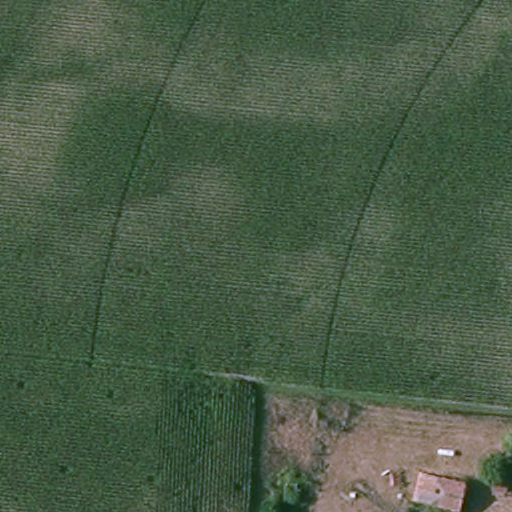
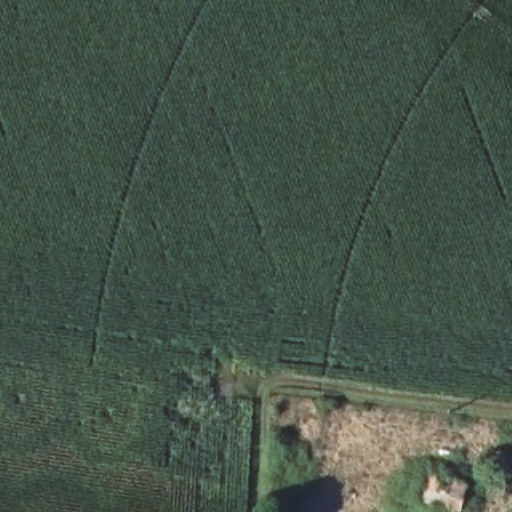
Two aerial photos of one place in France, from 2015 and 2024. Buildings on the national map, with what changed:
unchanged [(455,512),(442,512),(411,499),(419,477),(462,495),(455,512)]

